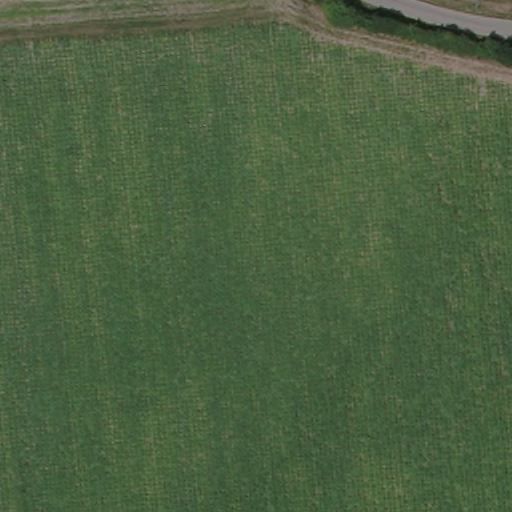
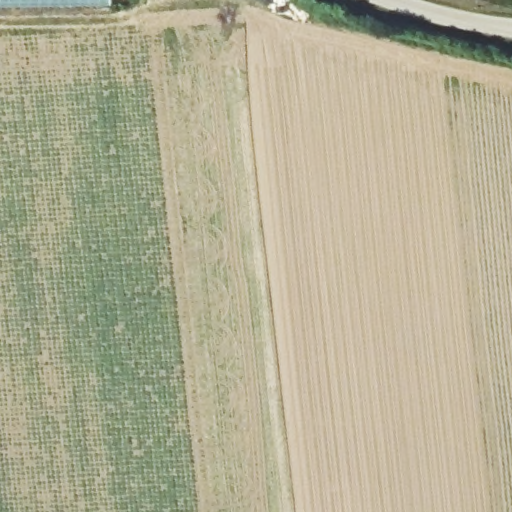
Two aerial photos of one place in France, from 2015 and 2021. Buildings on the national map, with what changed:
new [(0,5),(0,0),(113,0),(113,4),(0,5)]

